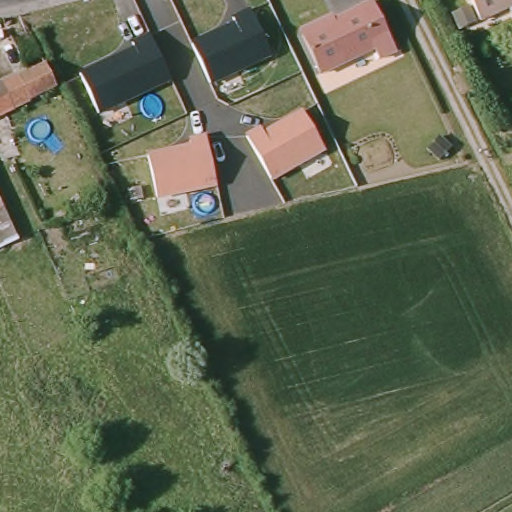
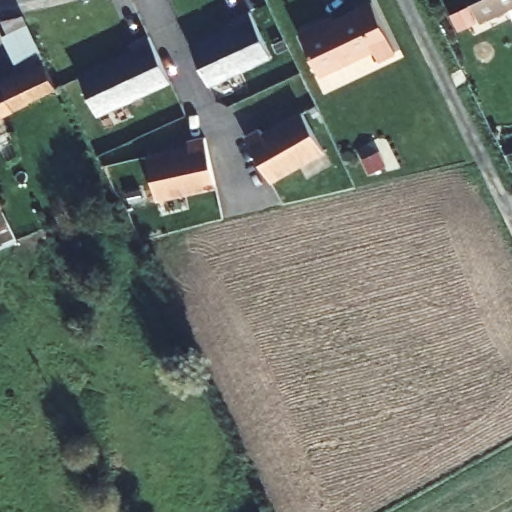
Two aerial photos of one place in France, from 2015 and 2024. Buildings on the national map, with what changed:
unchanged [(512,0),(512,22),(510,21),(503,8),(475,21),(465,0),(512,0)]
unchanged [(378,59),(373,48),(319,74),(301,36),(303,30),(315,24),(322,26),(355,10),(355,9),(371,1),(395,51),(378,59)]
unchanged [(233,26),(230,19),(249,11),(273,59),(211,87),(191,43),(233,26)]
unchanged [(1,21),(21,18),(56,88),(0,115),(0,86),(26,74),(1,21)]
unchanged [(170,85),(98,118),(80,75),(136,50),(134,43),(147,38),(170,85)]
unchanged [(263,133),(301,111),(325,153),(270,183),(244,135),(258,126),(263,133)]
unchanged [(191,146),(190,139),(205,135),(217,188),(156,199),(147,154),(191,146)]
unchanged [(0,208),(0,202),(2,207),(0,208)]
unchanged [(20,240),(0,250),(0,208),(2,207),(20,240)]

